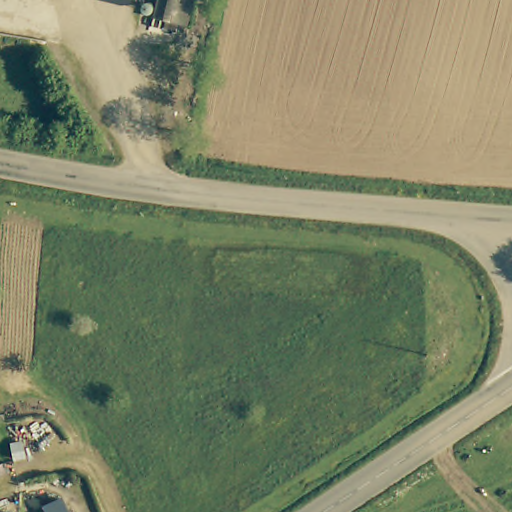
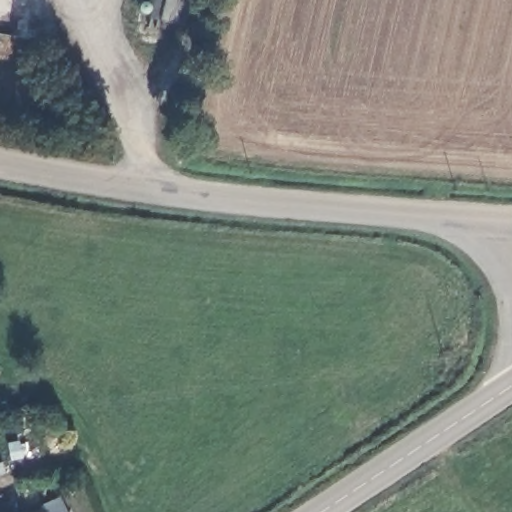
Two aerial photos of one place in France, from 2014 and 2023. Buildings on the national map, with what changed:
unchanged [(189,19),(178,17),(177,24),(167,23),(169,13),(155,12),(157,0),(193,0),(189,19)]

